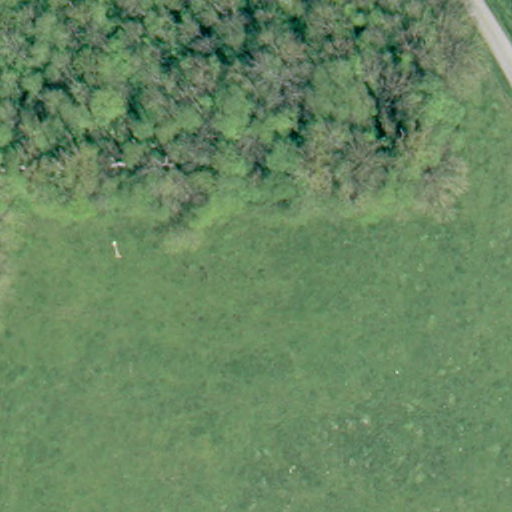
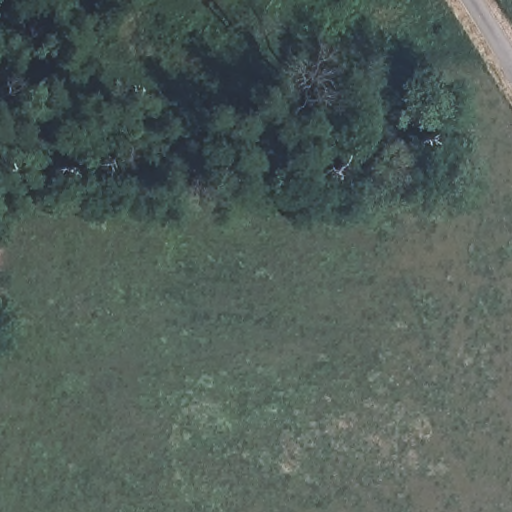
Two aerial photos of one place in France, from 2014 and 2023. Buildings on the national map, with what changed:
[]

